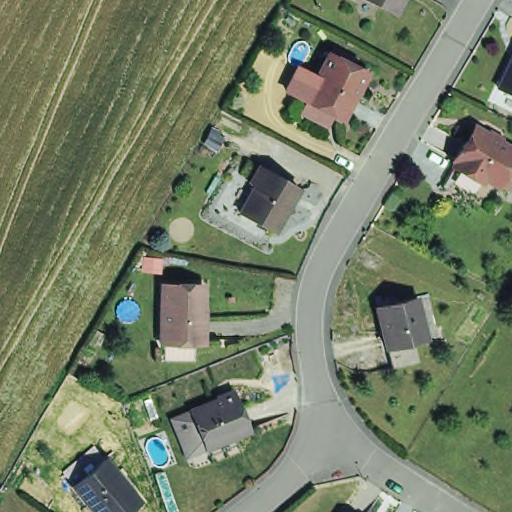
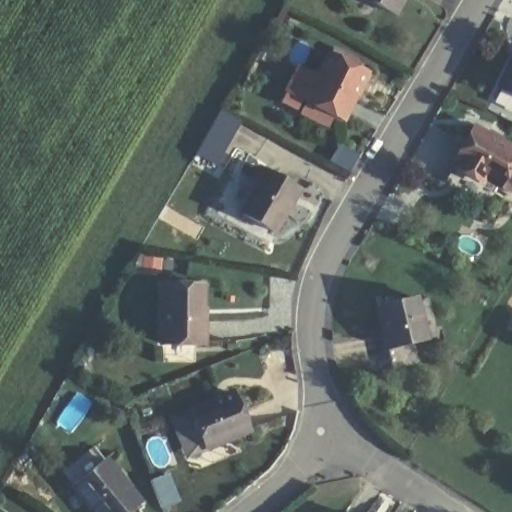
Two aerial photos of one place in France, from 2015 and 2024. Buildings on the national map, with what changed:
unchanged [(392,12),(369,0),(404,0),(397,14),(392,12)]
unchanged [(512,55),(512,93),(496,85),(512,55)]
unchanged [(300,101),(302,97),(312,79),(317,82),(330,60),(365,78),(344,119),(342,122),(300,101)]
new [(220,108),(242,120),(217,165),(195,153),(220,108)]
unchanged [(454,166),(457,161),(454,159),(474,127),(512,150),(512,164),(499,186),(485,178),(482,183),(472,177),(454,166)]
unchanged [(287,211),(275,231),(242,212),(257,183),(252,180),(260,166),(295,186),(300,188),(292,201),(294,209),(287,211)]
unchanged [(199,319),(204,319),(204,341),(161,340),(162,283),(200,284),(199,319)]
unchanged [(387,364),(382,344),(372,303),(410,294),(411,296),(424,293),(433,331),(420,334),(409,337),(415,357),(387,364)]
unchanged [(175,415),(189,410),(231,393),(246,430),(204,446),(190,452),(175,415)]
unchanged [(100,512),(74,480),(105,454),(140,495),(120,512),(100,512)]

